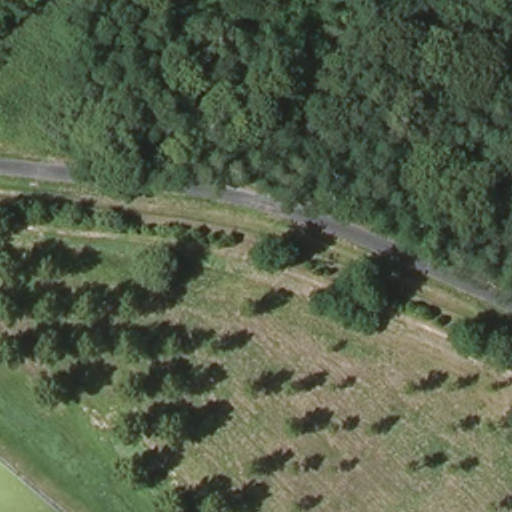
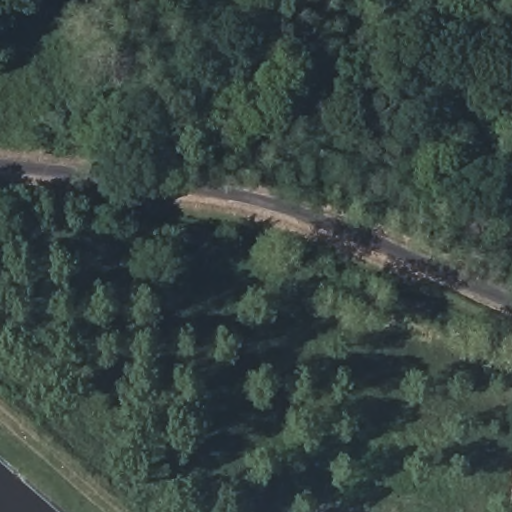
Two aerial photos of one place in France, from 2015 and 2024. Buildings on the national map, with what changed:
[]

